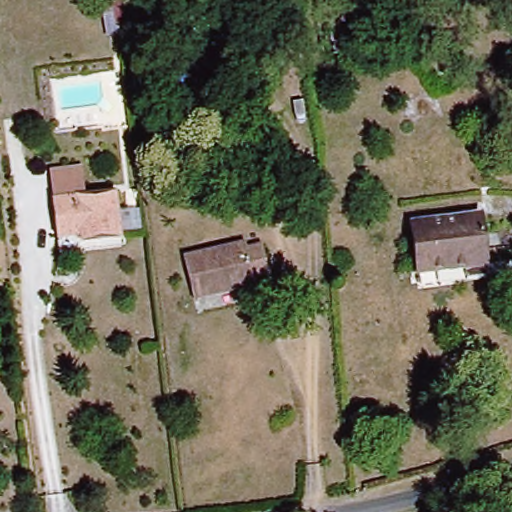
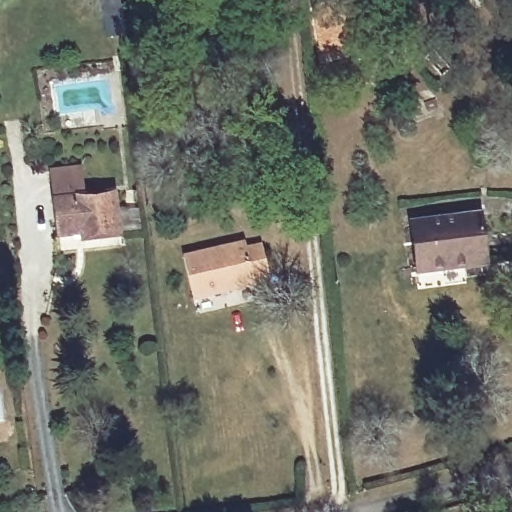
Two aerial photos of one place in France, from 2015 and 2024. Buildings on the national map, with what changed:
unchanged [(355,51),(322,56),(314,8),(346,3),(355,51)]
unchanged [(425,58),(434,51),(450,69),(440,76),(425,58)]
unchanged [(121,236),(83,240),(82,234),(58,236),(53,198),(51,166),(85,163),(87,194),(116,191),(121,236)]
unchanged [(458,268),(412,274),(406,224),(475,215),(482,264),(480,265),(480,276),(460,279),(458,268)]
unchanged [(245,243),(246,249),(261,245),(268,277),(253,280),(255,286),(193,300),(183,258),(245,243)]

